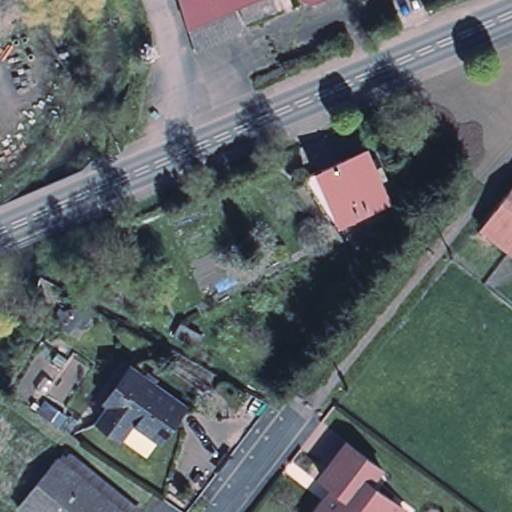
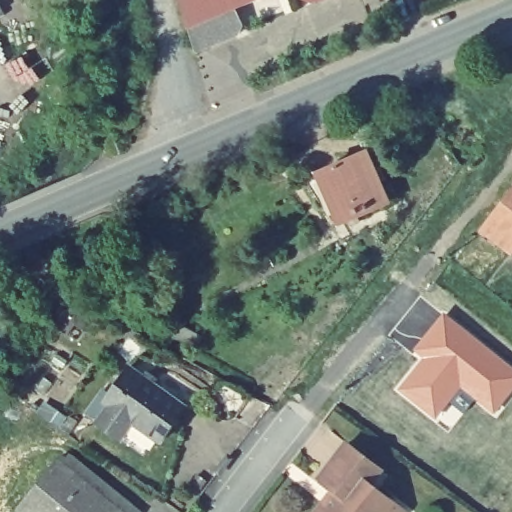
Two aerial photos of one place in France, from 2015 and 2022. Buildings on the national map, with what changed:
unchanged [(238,5),(245,22),(245,32),(240,37),(199,55),(184,0),(249,0),(238,5)]
unchanged [(387,163),(392,175),(385,178),(392,198),(338,221),(310,178),(312,174),(372,149),(379,166),(387,163)]
unchanged [(487,241),(479,235),(512,191),(512,252),(492,236),(487,241)]
new [(420,350),(427,340),(447,315),(512,367),(512,391),(497,411),(463,385),(438,416),(404,389),(426,362),(430,357),(420,350)]
unchanged [(197,343),(190,354),(166,341),(172,329),(197,343)]
unchanged [(127,438),(125,439),(102,422),(115,406),(109,402),(135,368),(191,406),(166,442),(160,437),(149,453),(127,438)]
unchanged [(63,422),(70,427),(62,441),(53,435),(63,422)]
unchanged [(369,479),(403,505),(398,512),(357,512),(330,491),(334,486),(318,474),(345,439),(380,464),(369,479)]
unchanged [(132,512),(29,512),(20,505),(60,456),(132,512)]
unchanged [(314,512),(330,491),(357,512),(314,512)]

